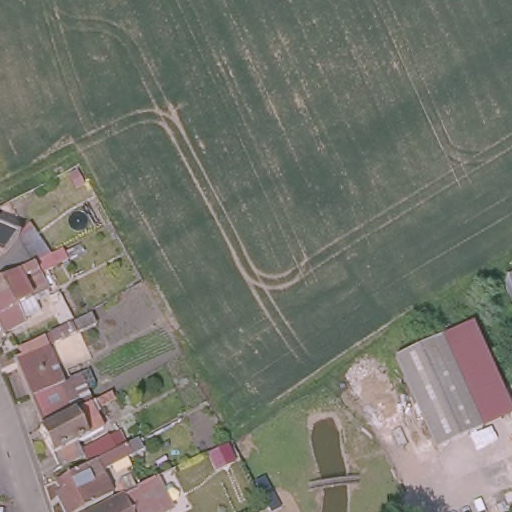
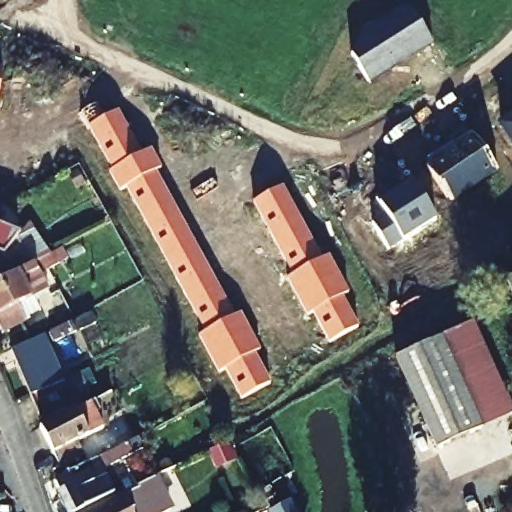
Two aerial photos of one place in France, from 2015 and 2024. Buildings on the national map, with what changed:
new [(411,10),(431,42),(403,60),(402,57),(367,80),(357,34),(405,5),(411,10)]
new [(0,75),(0,65),(1,65),(0,75)]
new [(125,188),(120,190),(109,170),(113,167),(89,125),(116,110),(141,153),(148,149),(158,167),(151,172),(232,316),(238,312),(257,348),(252,352),(268,382),(241,397),(224,367),(218,370),(200,334),(204,331),(125,188)]
new [(512,118),(512,142),(500,126),(512,118)]
new [(497,169),(453,197),(445,196),(426,165),(456,145),(454,142),(471,130),(497,169)]
new [(389,190),(391,195),(412,181),(435,217),(387,247),(371,221),(385,212),(375,199),(389,190)]
new [(280,185),(320,259),(326,255),(347,292),(340,296),(357,325),(329,340),(312,311),(306,314),(286,277),(292,275),(252,202),(280,185)]
unchanged [(0,272),(0,229),(18,236),(31,262),(6,275),(0,272)]
unchanged [(37,266),(48,287),(33,295),(38,306),(23,315),(25,318),(2,330),(0,326),(0,278),(6,275),(31,262),(34,267),(37,266)]
unchanged [(504,281),(512,278),(512,301),(504,281)]
unchanged [(397,356),(443,335),(475,322),(512,406),(512,414),(483,427),(438,449),(397,356)]
unchanged [(26,393),(10,355),(17,352),(15,344),(40,335),(59,379),(27,392),(26,393)]
unchanged [(40,423),(27,392),(59,379),(71,407),(40,423)]
unchanged [(90,397),(95,407),(90,410),(93,416),(79,423),(83,433),(49,451),(35,426),(40,423),(71,407),(90,397)]
unchanged [(96,465),(107,487),(63,510),(55,496),(57,484),(53,476),(83,460),(76,446),(115,427),(121,440),(126,450),(96,465)]
unchanged [(156,512),(71,512),(115,490),(111,481),(125,474),(130,483),(146,474),(164,508),(156,512)]

